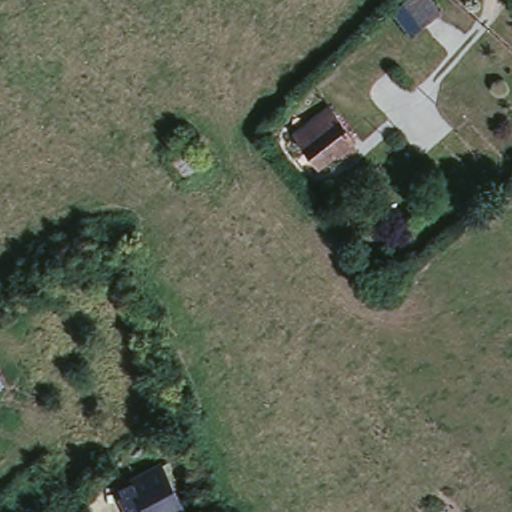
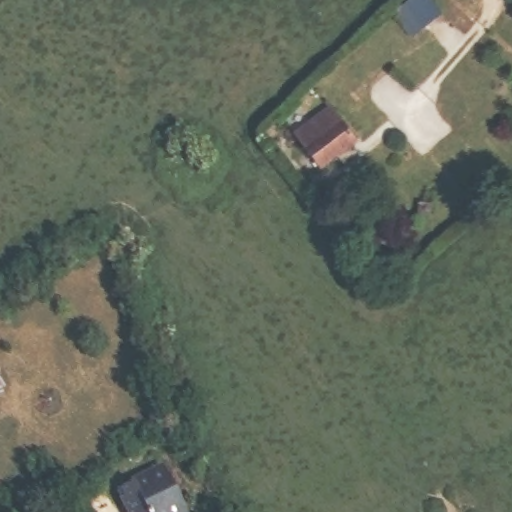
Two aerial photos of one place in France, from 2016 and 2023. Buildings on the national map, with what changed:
unchanged [(425,25),(408,6),(415,0),(440,0),(444,3),(425,25)]
unchanged [(358,136),(323,166),(297,131),(330,103),(358,136)]
unchanged [(175,170),(179,166),(172,155),(179,149),(189,161),(195,157),(204,170),(182,183),(175,170)]
unchanged [(0,392),(0,384),(5,389),(0,392)]
unchanged [(121,490),(134,481),(130,472),(157,460),(190,512),(131,512),(121,490)]

